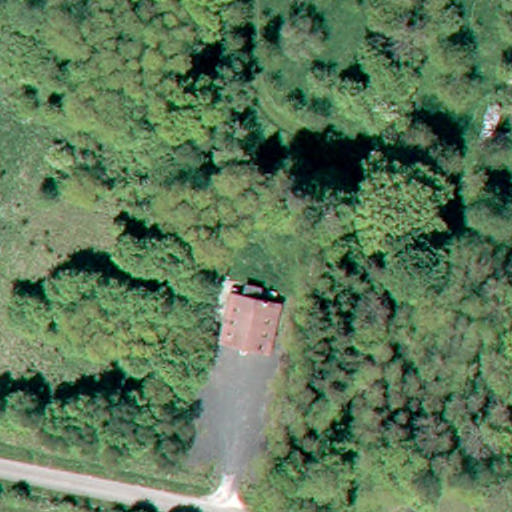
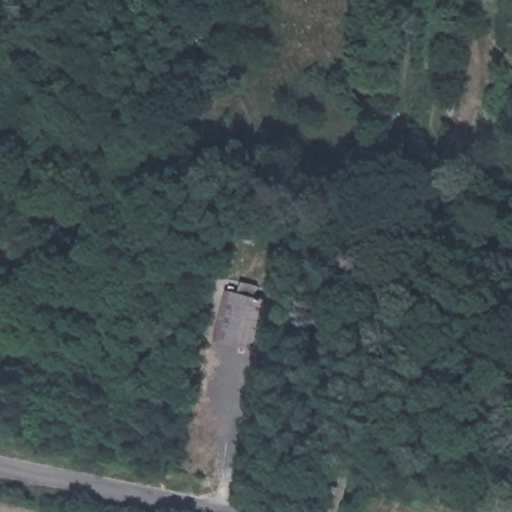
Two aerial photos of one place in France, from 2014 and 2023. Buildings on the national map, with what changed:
unchanged [(229,291),(239,291),(242,280),(262,284),(260,297),(284,303),(272,351),(218,342),(229,291)]

